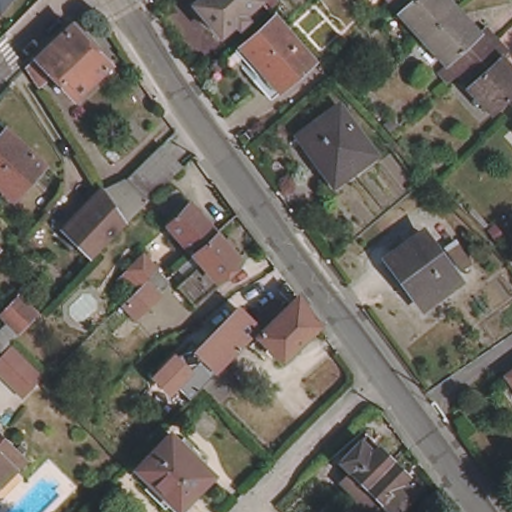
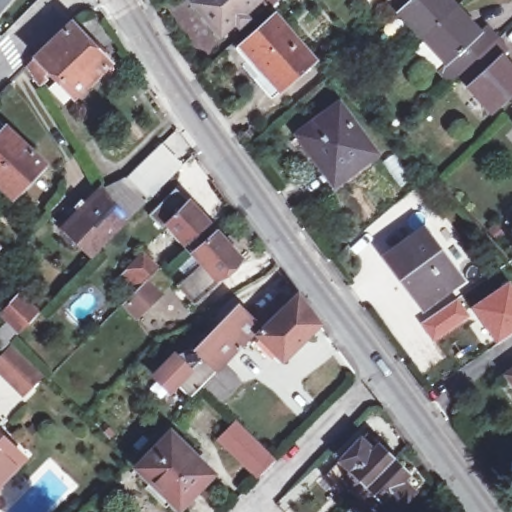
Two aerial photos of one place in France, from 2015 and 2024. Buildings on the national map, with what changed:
unchanged [(0,11),(0,0),(9,0),(0,11)]
unchanged [(215,34),(188,3),(192,0),(252,0),(215,34)]
unchanged [(462,6),(428,38),(403,12),(407,9),(398,0),(456,0),(462,6)]
unchanged [(467,73),(457,63),(453,66),(428,38),(462,6),(485,32),(491,27),(503,40),(467,73)]
unchanged [(33,61),(50,45),(80,17),(115,57),(80,90),(53,62),(42,73),(33,61)]
unchanged [(320,67),(285,98),(246,54),(280,22),(290,33),(320,67)]
unchanged [(512,53),(508,56),(512,60),(512,98),(497,112),(473,88),(477,84),(467,73),(503,40),(512,50),(512,53)]
unchanged [(324,157),(310,138),(349,111),(383,159),(353,181),(345,186),(324,157)]
unchanged [(12,129),(48,164),(17,197),(0,181),(0,141),(12,129)]
unchanged [(72,229),(111,190),(108,186),(132,178),(138,173),(163,148),(185,170),(152,202),(132,223),(131,222),(98,255),(72,229)]
unchanged [(218,234),(198,253),(170,222),(173,220),(166,211),(185,194),(192,201),(210,223),(218,234)]
unchanged [(218,234),(241,259),(221,277),(225,281),(198,305),(182,285),(192,276),(183,267),(198,253),(218,234)]
unchanged [(425,234),(458,279),(426,303),(393,258),(425,234)]
unchanged [(125,309),(142,291),(122,276),(142,249),(175,275),(141,315),(125,309)]
new [(512,283),(512,333),(495,344),(470,307),(510,279),(512,283)]
unchanged [(270,326),(305,292),(326,320),(290,353),(267,329),(270,326)]
unchanged [(26,293),(48,314),(27,341),(2,319),(26,293)]
new [(458,297),(471,316),(434,342),(420,323),(458,297)]
unchanged [(247,378),(227,399),(210,382),(200,393),(173,368),(200,341),(207,348),(250,305),(264,320),(223,362),(226,365),(230,361),(247,378)]
unchanged [(18,350),(42,375),(22,396),(0,374),(0,356),(2,354),(0,353),(0,323),(2,319),(27,341),(18,350)]
unchanged [(30,461),(0,492),(0,432),(30,461)]
unchanged [(370,489),(358,477),(363,472),(358,467),(361,463),(352,453),(372,433),(384,445),(390,439),(405,454),(370,489)]
unchanged [(178,438),(220,480),(189,512),(186,512),(146,471),(178,438)]
unchanged [(413,474),(426,486),(405,507),(400,502),(391,512),(379,512),(363,497),(370,489),(405,454),(419,468),(413,474)]

